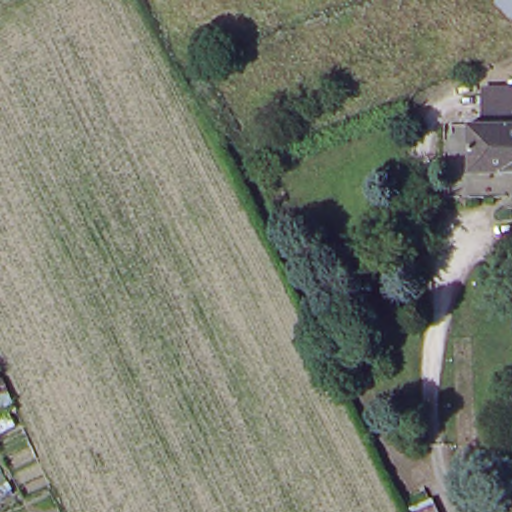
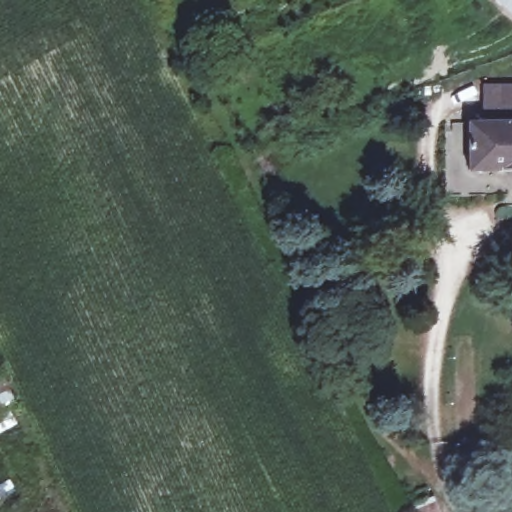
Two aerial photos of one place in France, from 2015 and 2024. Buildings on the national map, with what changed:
unchanged [(469,124),(494,123),(494,89),(512,89),(512,172),(469,172),(469,124)]
unchanged [(417,508),(436,499),(442,512),(419,512),(417,508)]

